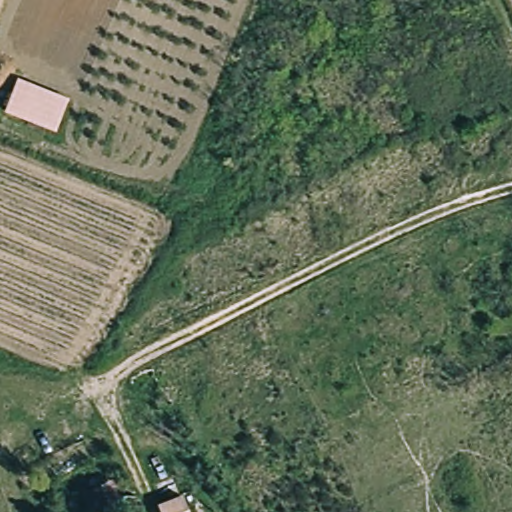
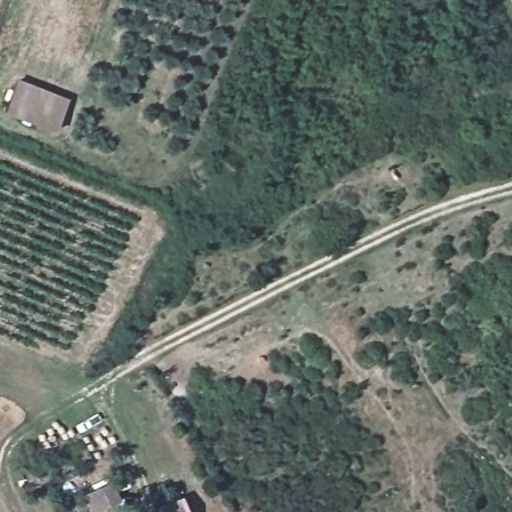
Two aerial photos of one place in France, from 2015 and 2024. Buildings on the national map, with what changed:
unchanged [(68,99),(56,133),(3,113),(18,78),(68,99)]
unchanged [(111,477),(123,504),(98,512),(90,512),(83,490),(111,477)]
unchanged [(176,490),(186,512),(159,512),(152,497),(176,490)]

